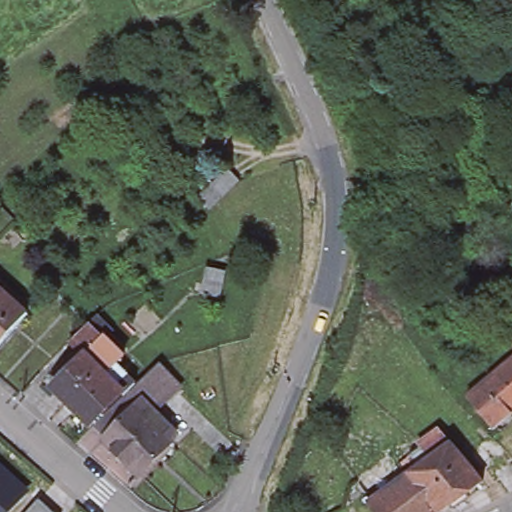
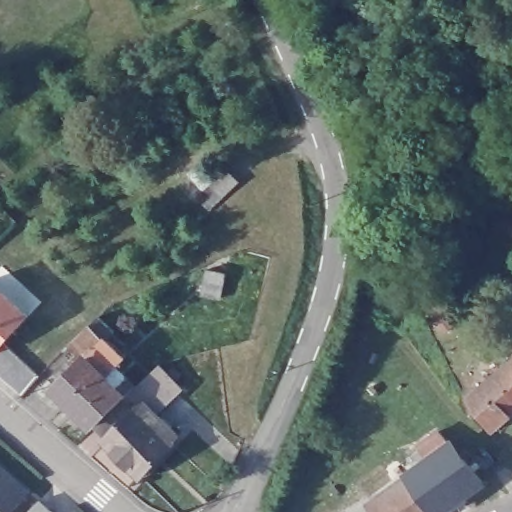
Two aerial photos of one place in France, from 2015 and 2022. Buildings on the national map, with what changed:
unchanged [(240,180),(217,202),(218,203),(209,210),(197,197),(227,168),(240,180)]
unchanged [(227,272),(222,296),(201,293),(207,268),(227,272)]
unchanged [(0,347),(0,288),(30,315),(0,347)]
unchanged [(53,393),(87,362),(70,347),(89,329),(102,317),(121,334),(108,347),(125,363),(117,370),(127,380),(137,389),(125,401),(122,399),(91,430),(53,393)]
unchanged [(488,431),(462,399),(512,357),(512,411),(488,431)]
unchanged [(140,480),(105,445),(92,433),(113,413),(125,401),(137,389),(158,369),(180,393),(156,417),(178,439),(170,446),(173,448),(140,480)]
unchanged [(420,448),(417,445),(439,430),(484,483),(443,512),(435,512),(408,475),(418,467),(409,456),(420,448)]
unchanged [(28,512),(0,512),(0,462),(28,490),(40,500),(28,512)]
unchanged [(371,512),(366,504),(360,496),(374,487),(380,495),(408,475),(435,512),(371,512)]
unchanged [(28,512),(40,500),(52,512),(28,512)]

